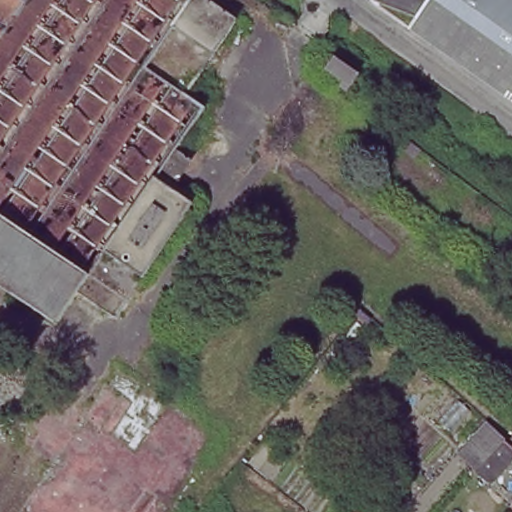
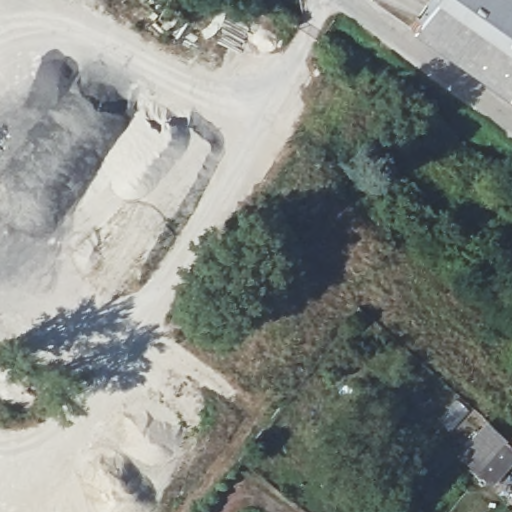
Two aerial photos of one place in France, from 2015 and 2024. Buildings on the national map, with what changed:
demolished [(156,178),(192,203),(113,317),(75,292),(53,322),(0,287),(0,0),(210,0),(237,18),(186,94),(204,108),(156,178)]
unchanged [(408,26),(425,0),(512,0),(512,99),(408,26)]
demolished [(348,91),(340,86),(344,80),(328,67),(336,57),(359,73),(348,91)]
unchanged [(512,440),(512,445),(510,442),(512,440)]
unchanged [(476,476),(504,445),(512,453),(512,459),(488,486),(476,476)]

